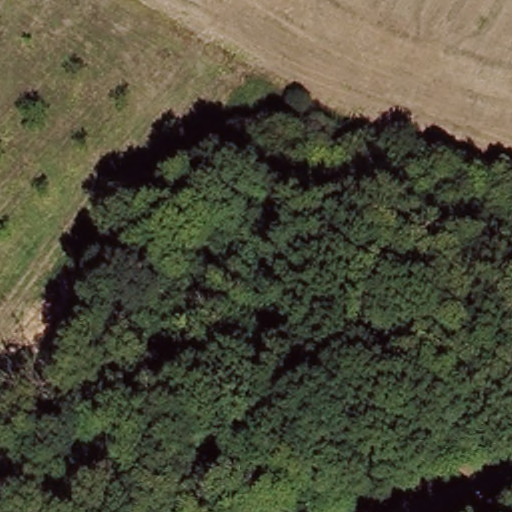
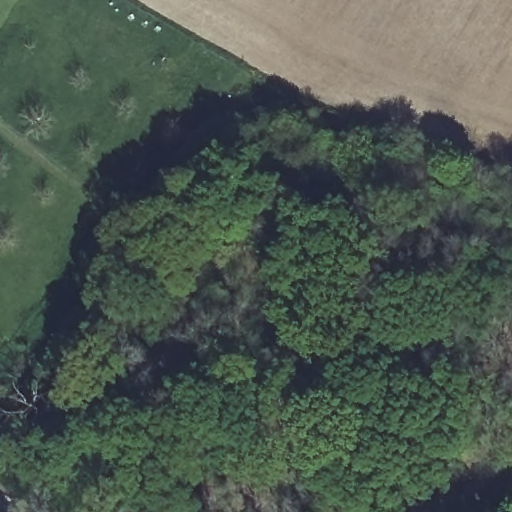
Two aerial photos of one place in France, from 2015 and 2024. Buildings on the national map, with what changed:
unchanged [(4,434),(15,448),(10,452),(0,440),(0,437),(4,434)]
unchanged [(9,473),(0,463),(0,461),(10,452),(19,463),(9,473)]

